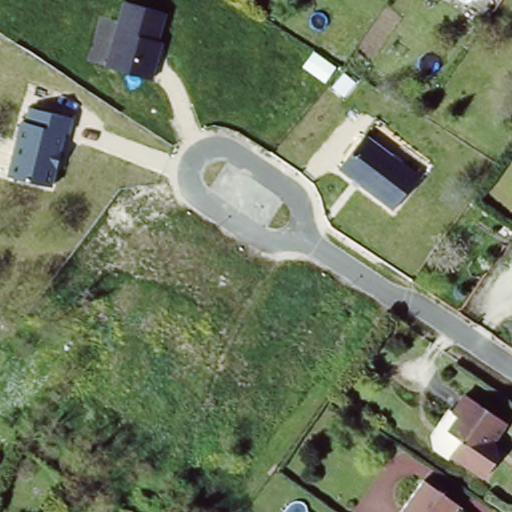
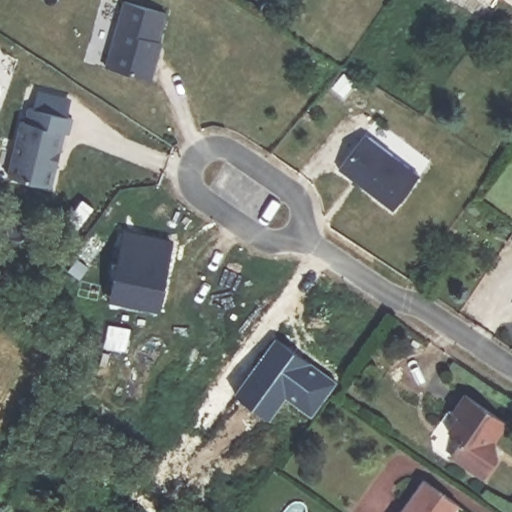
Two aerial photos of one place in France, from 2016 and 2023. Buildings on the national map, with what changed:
unchanged [(122,2),(167,14),(158,40),(162,42),(152,77),(106,65),(122,2)]
unchanged [(8,176),(20,121),(26,121),(29,106),(75,117),(72,133),(66,133),(53,186),(8,176)]
unchanged [(367,131),(419,175),(394,209),(342,165),(367,131)]
new [(125,232),(172,242),(158,308),(111,298),(125,232)]
new [(279,341),(295,352),(293,354),(301,359),(302,358),(339,384),(315,418),(288,398),(271,422),(237,397),(279,341)]
unchanged [(499,439),(501,459),(487,480),(454,457),(464,442),(451,433),(461,419),(456,414),(468,397),(509,425),(499,439)]
unchanged [(464,507),(460,512),(407,512),(429,482),(464,507)]

